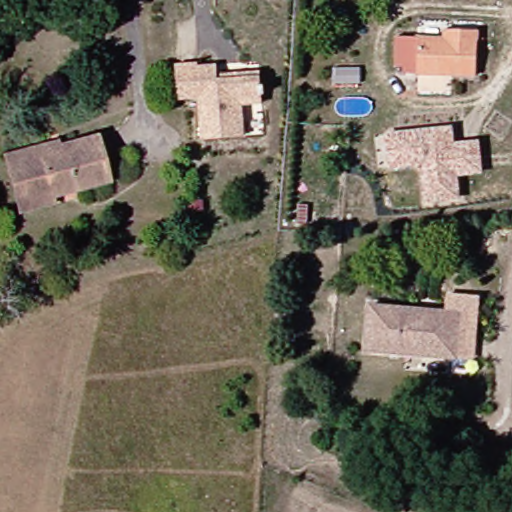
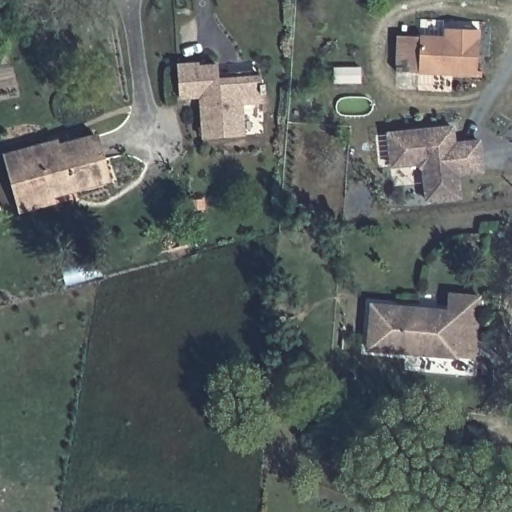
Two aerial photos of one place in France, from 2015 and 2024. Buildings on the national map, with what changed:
unchanged [(471,75),(390,73),(392,36),(440,38),(440,28),(451,29),(473,30),(471,75)]
unchanged [(196,66),(215,65),(216,74),(259,71),(260,75),(261,102),(242,103),(245,135),(201,138),(199,98),(180,99),(177,65),(196,63),(196,66)]
unchanged [(426,202),(423,172),(415,166),(391,168),(389,148),(387,136),(405,134),(452,129),(453,146),(478,143),(481,174),(456,176),(458,199),(426,202)]
unchanged [(16,210),(0,156),(50,143),(51,147),(90,136),(103,179),(45,195),(47,202),(16,210)]
unchanged [(460,313),(456,357),(367,349),(371,305),(460,313)]

